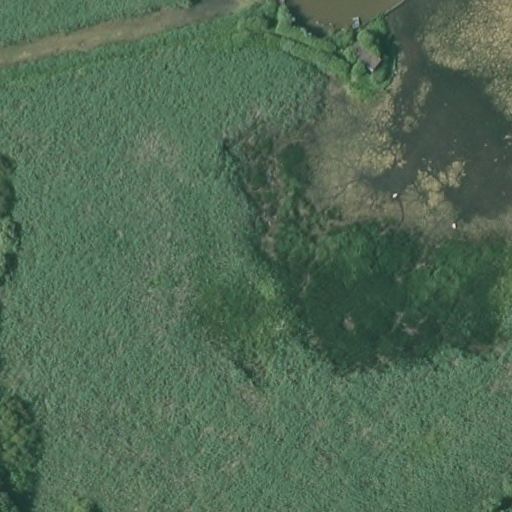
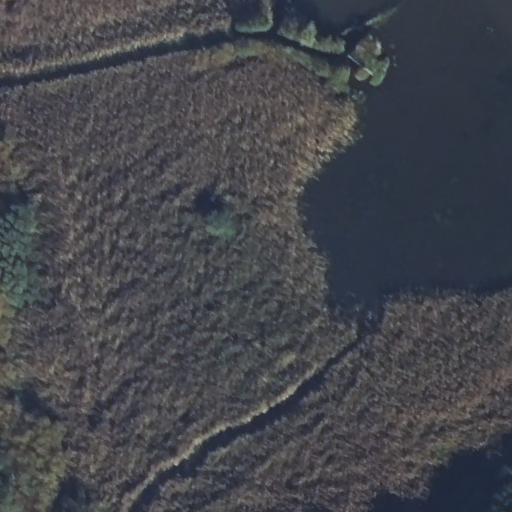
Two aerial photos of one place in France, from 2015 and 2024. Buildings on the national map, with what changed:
unchanged [(382,63),(372,74),(350,54),(361,42),(382,63)]

